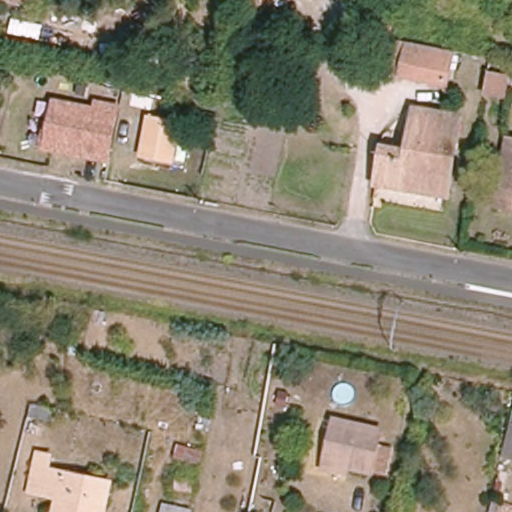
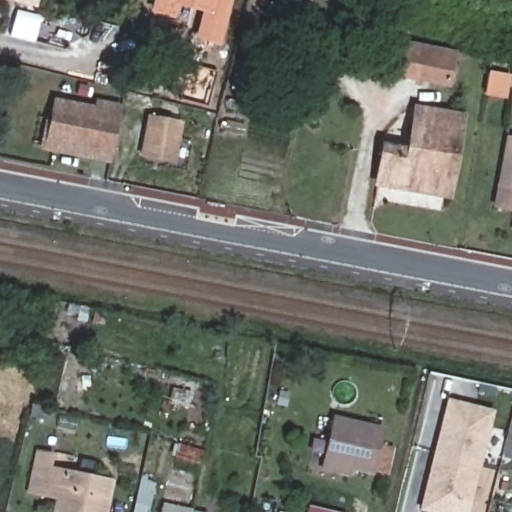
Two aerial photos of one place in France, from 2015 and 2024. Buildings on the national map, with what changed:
unchanged [(23,0),(32,0),(31,2),(23,0)]
new [(177,7),(175,19),(149,12),(152,0),(231,0),(219,46),(194,39),(200,13),(177,7)]
unchanged [(455,51),(448,83),(403,74),(410,42),(455,51)]
unchanged [(506,96),(485,93),(489,74),(509,77),(506,96)]
unchanged [(111,165),(39,150),(45,120),(54,121),(57,99),(90,105),(92,97),(123,105),(111,165)]
unchanged [(461,117),(450,179),(440,177),(436,195),(378,185),(386,149),(410,153),(417,110),(461,117)]
unchanged [(180,125),(174,160),(144,154),(150,119),(180,125)]
unchanged [(512,209),(496,205),(509,139),(512,140),(512,209)]
new [(491,414),(478,467),(436,456),(450,403),(491,414)]
unchanged [(52,422),(30,417),(32,405),(55,410),(52,422)]
unchanged [(369,445),(388,448),(382,476),(370,474),(319,462),(330,417),(372,427),(369,445)]
unchanged [(510,428),(512,429),(512,454),(505,451),(510,428)]
unchanged [(62,499),(30,492),(39,453),(52,455),(50,469),(111,482),(105,512),(59,512),(62,499)]
new [(423,510),(436,456),(478,467),(467,512),(433,512),(423,510)]

